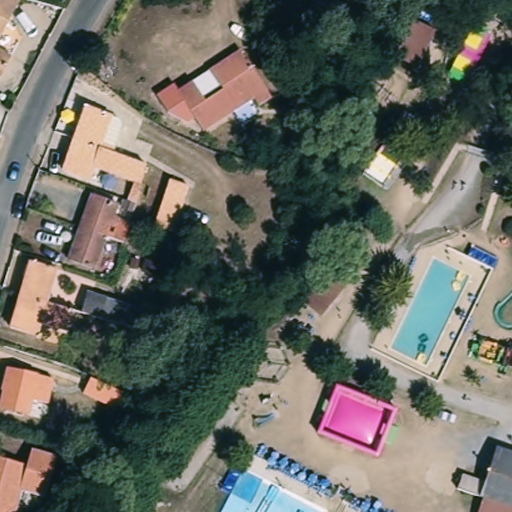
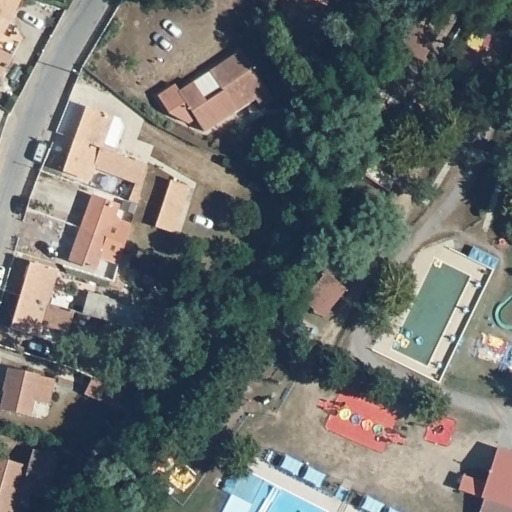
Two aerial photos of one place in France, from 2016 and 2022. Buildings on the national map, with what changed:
unchanged [(2,37),(0,36),(0,0),(23,0),(2,37)]
unchanged [(323,4),(314,0),(325,0),(323,4)]
unchanged [(399,56),(415,20),(437,30),(421,66),(399,56)]
unchanged [(242,48),(267,88),(204,128),(180,89),(242,48)]
unchanged [(14,57),(2,77),(0,76),(0,51),(14,57)]
unchanged [(88,106),(121,119),(126,129),(117,154),(102,149),(76,139),(88,106)]
unchanged [(90,182),(62,173),(76,139),(102,149),(90,182)]
unchanged [(126,177),(132,159),(151,167),(146,183),(126,177)]
unchanged [(192,189),(182,220),(164,215),(173,183),(192,189)]
unchanged [(92,197),(119,205),(115,219),(121,224),(131,227),(125,242),(109,237),(82,228),(92,197)]
unchanged [(97,270),(70,263),(82,228),(109,237),(97,270)]
unchanged [(44,323),(40,336),(13,328),(23,294),(32,262),(59,270),(51,302),(76,309),(69,331),(44,323)]
unchanged [(330,266),(348,281),(325,309),(307,294),(330,266)]
unchanged [(107,318),(86,312),(92,291),(113,297),(159,311),(152,331),(107,318)]
unchanged [(55,381),(49,406),(34,402),(30,414),(3,407),(7,388),(4,387),(10,368),(55,381)]
unchanged [(119,411),(85,398),(92,381),(126,394),(119,411)]
unchanged [(512,508),(480,497),(457,490),(462,474),(485,482),(497,447),(512,452),(512,508)]
unchanged [(30,452),(56,458),(46,497),(23,493),(20,502),(26,504),(23,512),(0,512),(0,458),(27,464),(30,452)]

